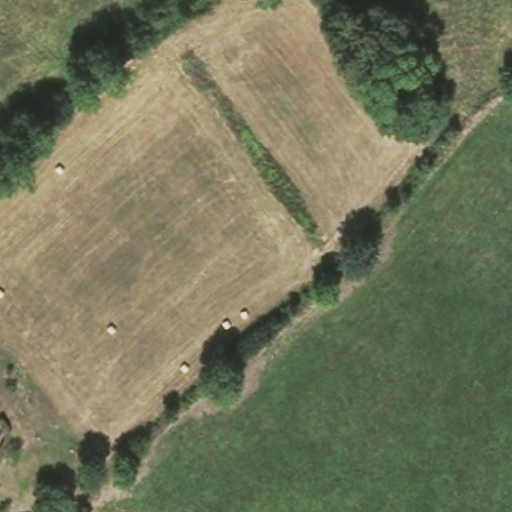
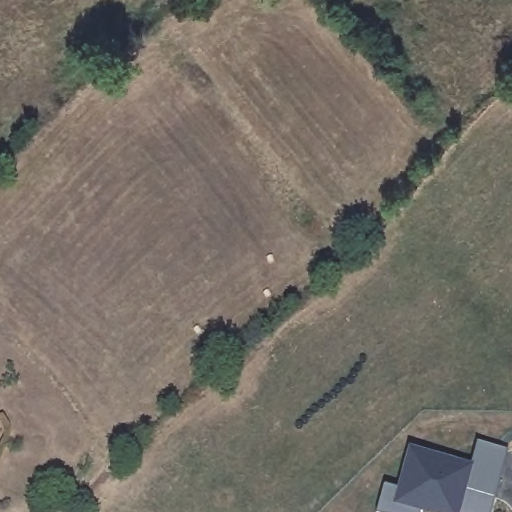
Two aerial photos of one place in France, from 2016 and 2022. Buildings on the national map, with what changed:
new [(470,467),(476,445),(506,453),(492,500),(490,512),(376,512),(383,488),(397,491),(397,467),(408,451),(470,467)]

